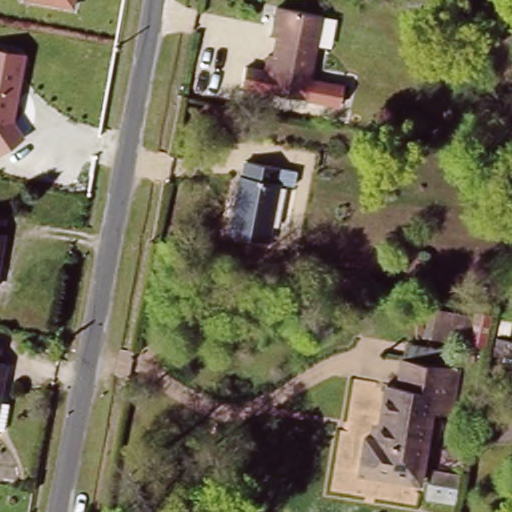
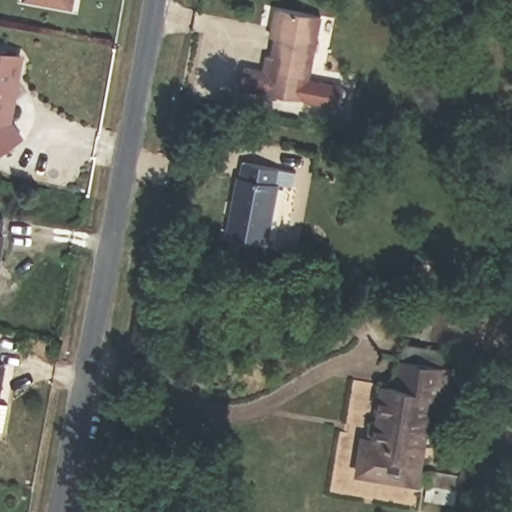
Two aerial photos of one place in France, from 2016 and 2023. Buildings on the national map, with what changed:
unchanged [(69,0),(67,7),(27,0),(69,0)]
unchanged [(280,13),(327,20),(313,99),(267,91),(280,13)]
unchanged [(21,134),(0,148),(0,46),(15,49),(21,56),(17,80),(15,94),(10,118),(21,134)]
unchanged [(243,164),(280,170),(267,240),(231,234),(243,164)]
unchanged [(0,282),(0,211),(8,212),(5,231),(8,231),(0,282)]
unchanged [(426,307),(512,320),(507,351),(421,338),(426,307)]
unchanged [(387,385),(402,387),(407,360),(463,368),(454,413),(434,410),(429,443),(378,435),(387,385)]
unchanged [(8,428),(0,427),(0,362),(7,363),(1,398),(13,400),(8,428)]
unchanged [(422,485),(360,475),(367,433),(378,435),(429,443),(422,485)]

